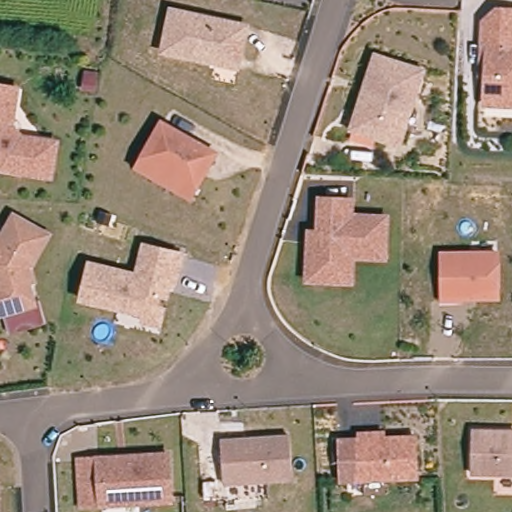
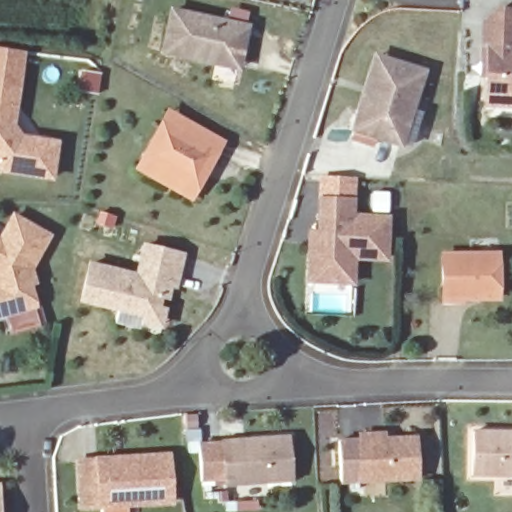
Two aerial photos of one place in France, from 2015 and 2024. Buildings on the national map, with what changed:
unchanged [(485,79),(476,77),(481,20),(496,6),(512,7),(512,108),(484,106),(485,79)]
unchanged [(220,63),(167,52),(175,11),(250,26),(244,57),(242,67),(220,63)]
new [(0,85),(0,48),(26,52),(22,89),(0,85)]
unchanged [(385,139),(355,130),(361,111),(377,56),(384,58),(425,70),(408,126),(403,144),(385,139)]
unchanged [(22,89),(17,117),(14,117),(13,125),(23,140),(32,141),(33,139),(60,143),(54,178),(4,170),(0,165),(0,85),(22,89)]
unchanged [(142,169),(148,158),(166,125),(219,154),(201,187),(195,198),(142,169)]
new [(4,170),(54,178),(53,182),(0,174),(0,165),(4,170)]
unchanged [(335,277),(308,277),(309,237),(309,228),(318,228),(318,195),(350,195),(350,211),(386,212),(385,252),(352,251),(352,258),(352,277),(335,277)]
unchanged [(6,242),(20,217),(55,237),(37,269),(40,282),(36,284),(42,305),(8,315),(0,317),(0,238),(6,242)]
unchanged [(89,259),(135,270),(141,243),(185,255),(178,287),(171,286),(169,295),(165,293),(162,307),(167,308),(162,328),(141,324),(143,315),(78,301),(89,259)]
unchanged [(443,252),(500,252),(499,300),(442,302),(443,252)]
unchanged [(471,429),(512,430),(512,474),(470,473),(471,429)]
unchanged [(410,478),(350,482),(347,440),(407,436),(410,478)]
unchanged [(295,481),(225,485),(222,442),(292,437),(295,481)]
unchanged [(174,498),(142,500),(141,493),(103,496),(104,503),(83,504),(80,457),(170,450),(174,498)]

